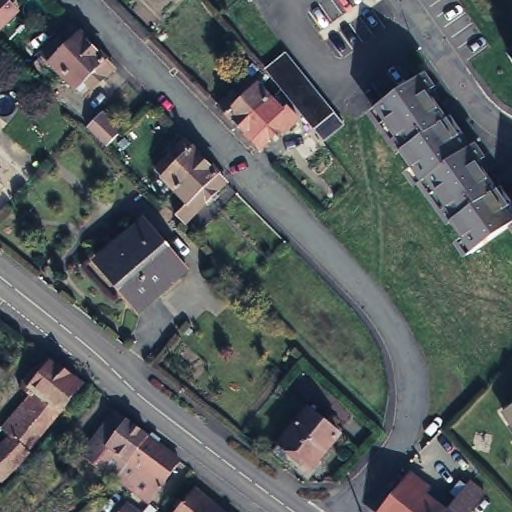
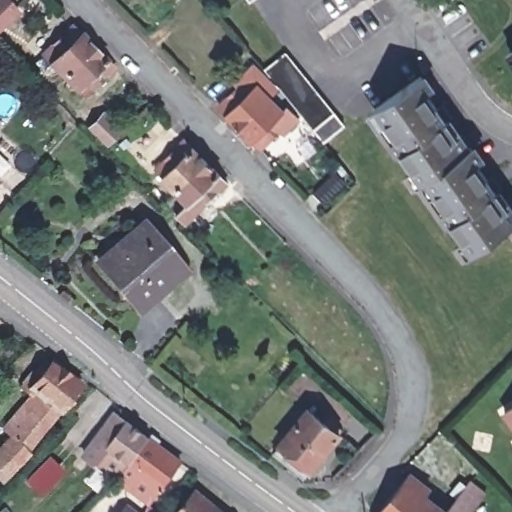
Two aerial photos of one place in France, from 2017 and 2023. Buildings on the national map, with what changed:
unchanged [(0,30),(0,0),(10,0),(20,10),(0,30)]
unchanged [(46,65),(57,56),(47,48),(67,27),(88,49),(58,78),(46,65)]
unchanged [(88,49),(110,70),(90,90),(82,81),(72,91),(58,78),(88,49)]
unchanged [(287,55),(345,126),(324,143),(265,72),(287,55)]
unchanged [(510,64),(512,63),(512,67),(510,64)]
unchanged [(420,73),(430,86),(427,89),(466,145),(471,141),(482,156),(477,159),(512,208),(512,220),(472,249),(442,208),(446,205),(425,176),(420,179),(391,136),(395,134),(375,105),(420,73)]
unchanged [(223,103),(245,83),(255,74),(262,82),(275,95),(244,125),(223,103)]
unchanged [(275,95),(288,108),(296,116),(286,126),(265,146),(244,125),(275,95)]
unchanged [(110,117),(128,135),(115,149),(97,131),(110,117)]
unchanged [(174,161),(194,141),(215,162),(185,192),(171,179),(163,171),(174,161)]
unchanged [(185,192),(215,162),(237,184),(217,204),(194,226),(184,216),(197,204),(185,192)]
unchanged [(162,181),(168,188),(164,193),(157,187),(162,181)]
unchanged [(130,240),(128,236),(148,219),(189,267),(143,306),(105,262),(130,240)]
unchanged [(0,422),(52,362),(87,388),(6,481),(0,475),(0,422)]
unchanged [(512,405),(512,423),(503,411),(512,405)]
unchanged [(303,415),(327,436),(331,430),(338,436),(306,475),(275,449),(303,415)]
unchanged [(107,453),(97,465),(85,456),(112,421),(122,429),(127,421),(148,437),(130,462),(125,458),(120,464),(107,453)]
unchanged [(180,461),(150,501),(131,487),(142,471),(130,462),(148,437),(180,461)]
unchanged [(408,464),(417,470),(423,462),(435,471),(424,486),(445,502),(471,471),(487,484),(464,512),(388,512),(378,505),(408,464)]
unchanged [(196,489),(225,512),(177,512),(196,489)]

